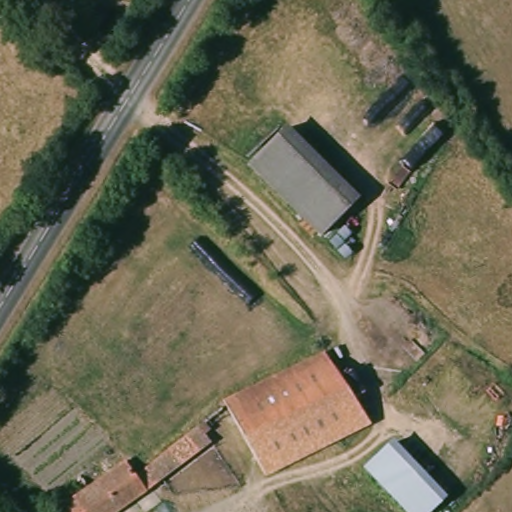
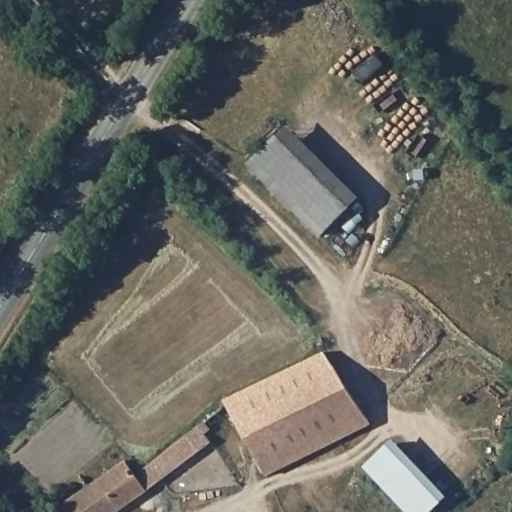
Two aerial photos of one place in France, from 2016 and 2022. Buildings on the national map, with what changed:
unchanged [(285,136),(351,204),(325,232),(257,164),(285,136)]
unchanged [(267,479),(237,427),(226,407),(306,362),(322,354),(366,427),(339,442),(333,445),(267,479)]
unchanged [(83,490),(124,458),(139,465),(145,467),(192,434),(199,430),(210,447),(211,448),(125,512),(63,512),(60,508),(83,490)]
unchanged [(442,498),(429,512),(413,512),(370,470),(390,448),(442,498)]

